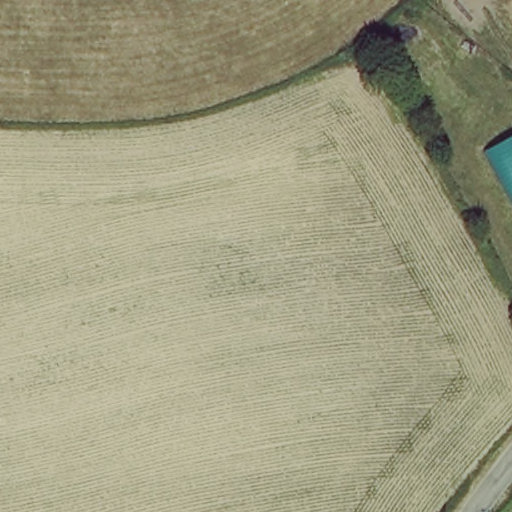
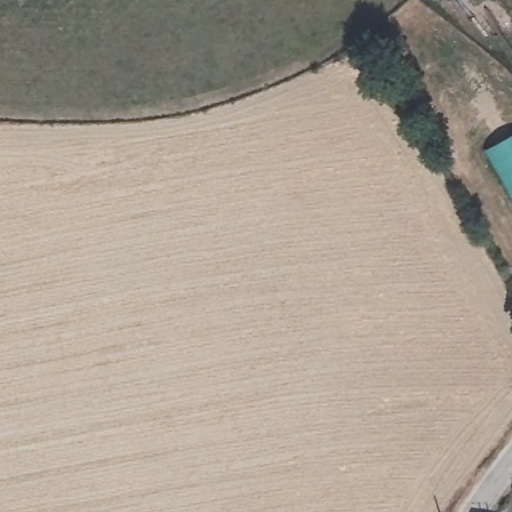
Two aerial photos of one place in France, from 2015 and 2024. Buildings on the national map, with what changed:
unchanged [(479,153),(512,134),(512,210),(479,153)]

